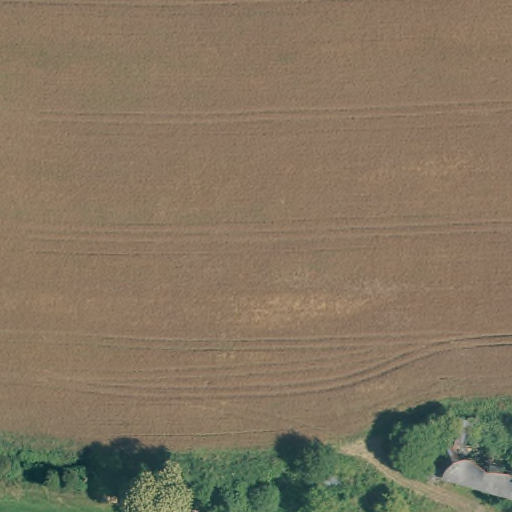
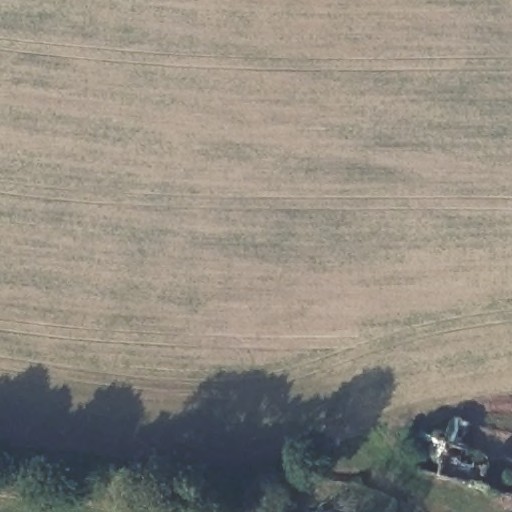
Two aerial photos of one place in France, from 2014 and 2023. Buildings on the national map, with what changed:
unchanged [(424,431),(451,437),(458,414),(465,416),(512,429),(512,492),(416,466),(424,431)]

